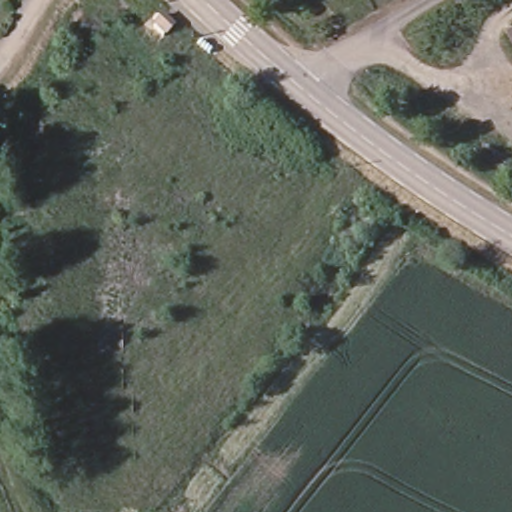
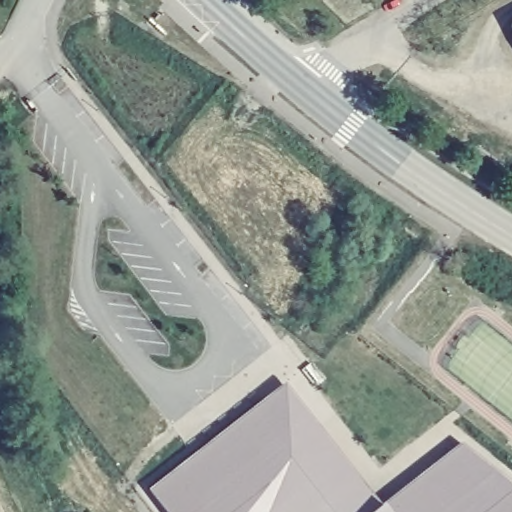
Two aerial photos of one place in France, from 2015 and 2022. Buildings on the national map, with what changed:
unchanged [(508,24),(512,21),(512,32),(508,24)]
new [(463,445),(512,484),(512,512),(165,512),(148,491),(286,384),(382,505),(463,445)]

